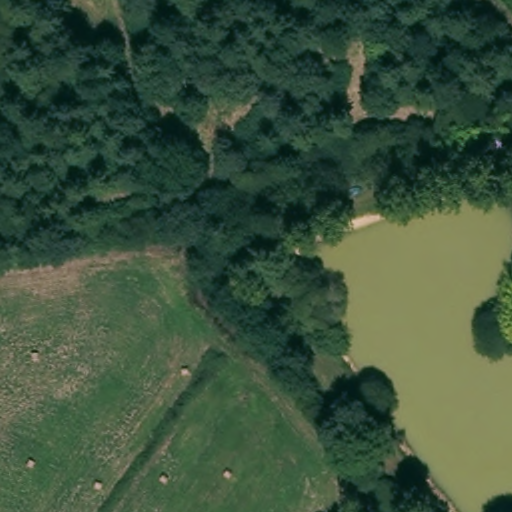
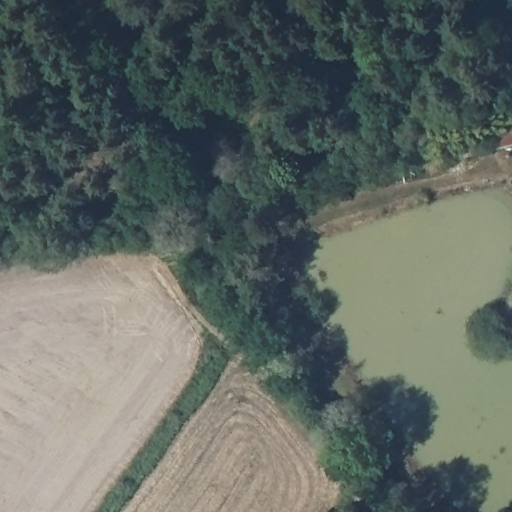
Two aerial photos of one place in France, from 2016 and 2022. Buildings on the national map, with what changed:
unchanged [(512,126),(512,147),(468,160),(435,175),(420,156),(455,140),(512,126)]

